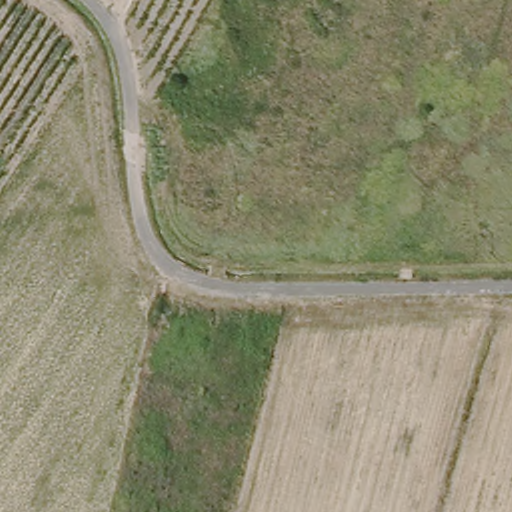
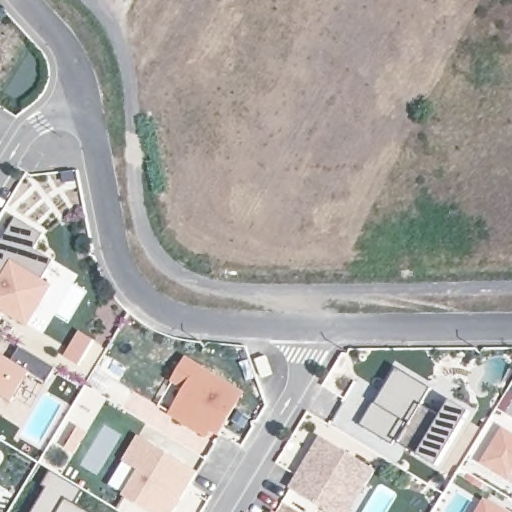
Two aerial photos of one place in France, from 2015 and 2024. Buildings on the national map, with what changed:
new [(0,312),(0,278),(0,277),(0,246),(17,219),(43,235),(34,249),(53,261),(41,278),(53,286),(27,327),(0,312)]
new [(30,372),(11,403),(0,396),(0,353),(13,361),(22,346),(55,367),(46,382),(30,372)]
new [(202,432),(172,414),(159,406),(174,381),(187,360),(243,393),(225,424),(217,420),(207,435),(202,432)]
new [(419,456),(400,442),(411,426),(405,421),(392,444),(360,423),(373,405),(375,403),(397,368),(430,388),(422,406),(442,417),(452,402),(470,412),(437,466),(419,456)]
new [(502,425),(512,431),(512,477),(509,482),(480,463),(502,425)]
new [(173,512),(148,512),(122,496),(137,471),(122,461),(137,436),(197,472),(180,500),(175,507),(173,512)]
new [(377,471),(352,512),(330,512),(289,488),(319,437),(377,471)]
new [(47,488),(40,485),(50,468),(82,487),(73,501),(91,512),(32,512),(47,488)]
new [(485,500),(504,512),(477,512),(485,500)]

